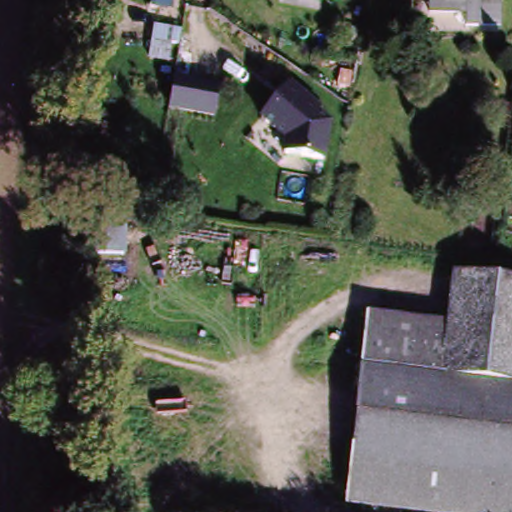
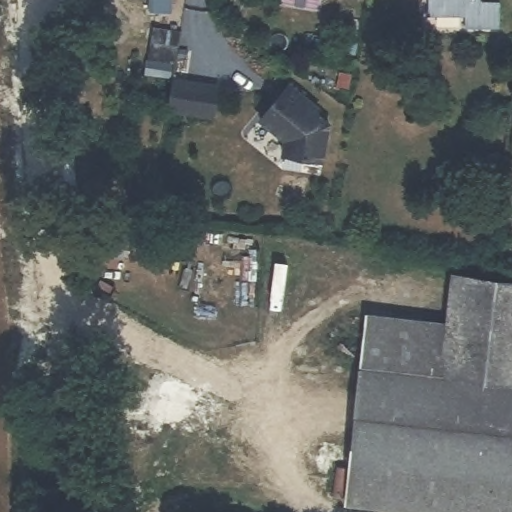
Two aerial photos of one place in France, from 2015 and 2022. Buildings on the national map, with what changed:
unchanged [(171,0),(171,10),(148,10),(148,0),(171,0)]
unchanged [(445,27),(445,13),(417,11),(418,0),(468,0),(463,29),(445,27)]
unchanged [(175,29),(172,50),(145,44),(148,25),(175,29)]
unchanged [(174,76),(220,84),(214,116),(167,110),(174,76)]
unchanged [(332,122),(325,161),(281,155),(283,142),(258,119),(290,81),(332,122)]
unchanged [(467,285),(512,289),(512,512),(437,512),(343,502),(358,323),(460,335),(467,285)]

